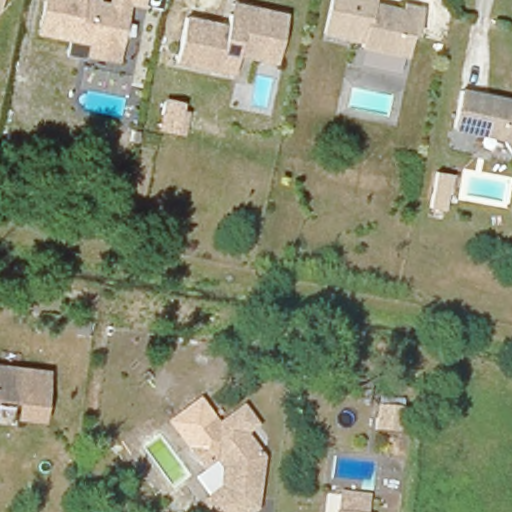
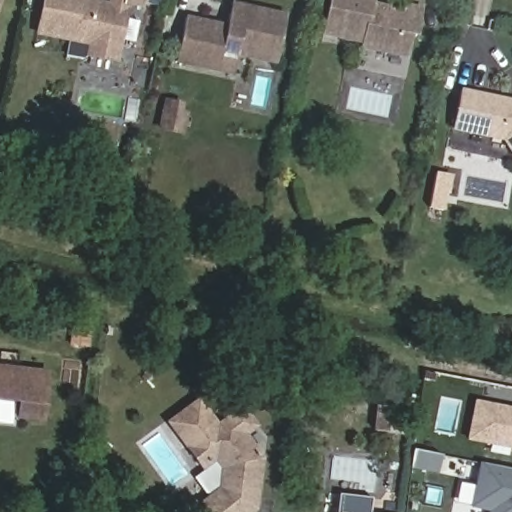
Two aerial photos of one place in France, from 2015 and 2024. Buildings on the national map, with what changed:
unchanged [(132,4),(118,63),(84,56),(86,44),(35,33),(41,0),(146,0),(145,6),(132,4)]
unchanged [(405,9),(405,1),(425,6),(420,37),(412,36),(408,58),(363,49),(363,43),(323,36),(331,0),(376,0),(375,3),(405,9)]
unchanged [(224,21),(229,1),(286,13),(274,65),(237,55),(230,74),(174,61),(184,14),(224,21)]
unchanged [(512,97),(512,156),(503,141),(450,130),(458,88),(512,97)]
unchanged [(185,102),(182,110),(192,113),(187,137),(155,131),(164,98),(185,102)]
unchanged [(43,424),(12,419),(15,402),(0,400),(0,363),(47,371),(43,424)]
new [(467,441),(475,400),(512,407),(512,449),(467,441)]
unchanged [(221,487),(223,467),(214,453),(201,464),(188,448),(240,406),(252,423),(241,431),(261,454),(256,496),(249,502),(254,508),(248,512),(211,512),(203,502),(221,487)]
new [(397,434),(378,432),(381,407),(400,410),(397,434)]
new [(478,463),(512,470),(512,512),(486,512),(486,510),(470,508),(478,463)]
new [(339,493),(372,497),(371,512),(336,512),(339,493)]

